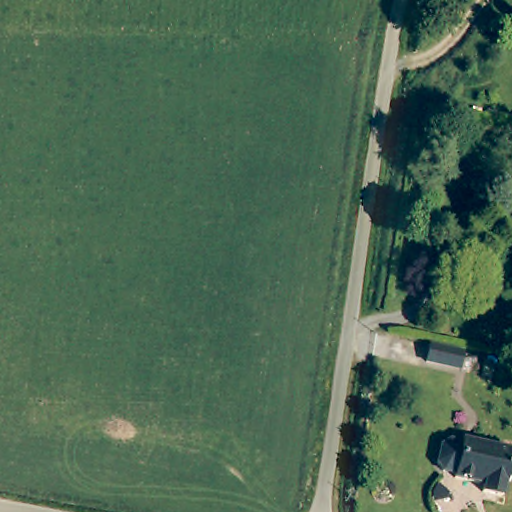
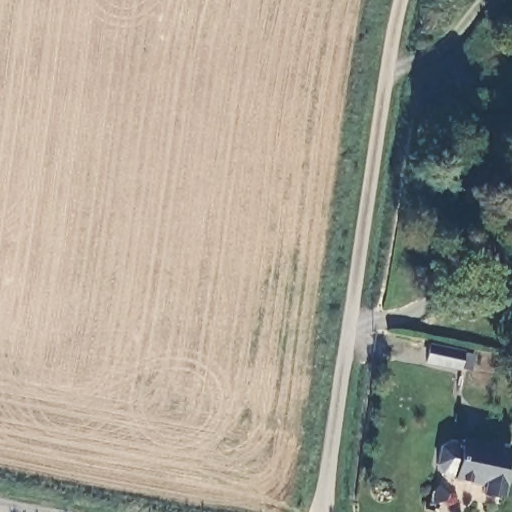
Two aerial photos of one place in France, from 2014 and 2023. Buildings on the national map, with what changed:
unchanged [(457,348),(453,365),(419,357),(423,340),(457,348)]
unchanged [(494,495),(474,490),(477,483),(448,476),(449,471),(436,468),(431,460),(436,441),(444,437),(457,440),(458,436),(506,448),(494,495)]

